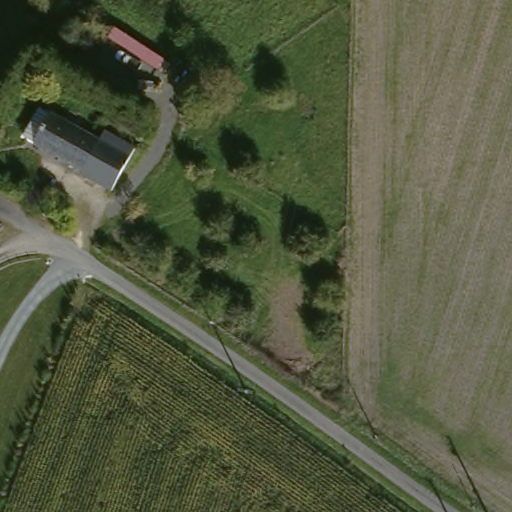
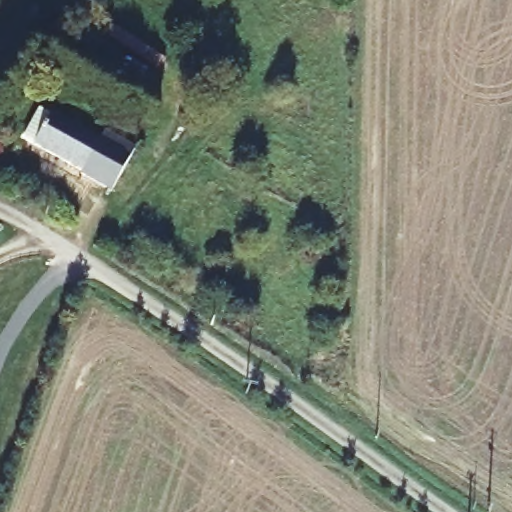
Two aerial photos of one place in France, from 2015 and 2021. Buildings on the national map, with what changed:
unchanged [(106,130),(136,148),(112,190),(81,173),(83,170),(35,142),(36,140),(21,131),(39,103),(54,111),(101,139),(106,130)]

